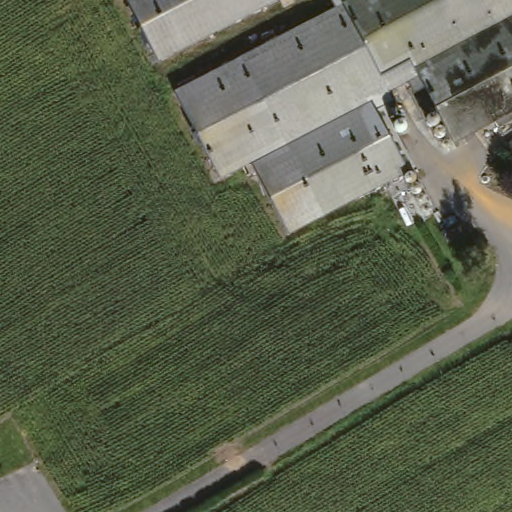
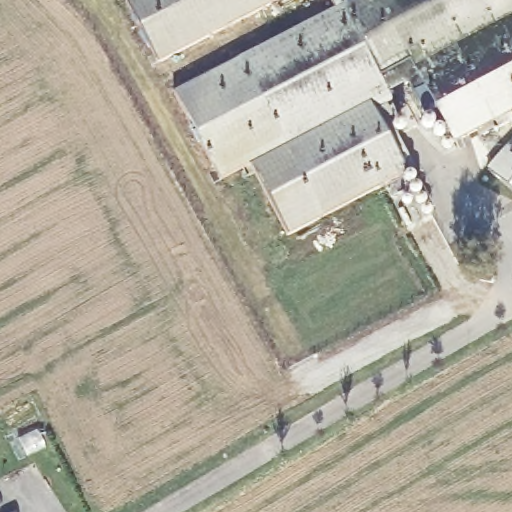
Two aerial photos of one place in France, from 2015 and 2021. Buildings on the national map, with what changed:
unchanged [(127,0),(279,0),(160,61),(127,0)]
unchanged [(363,0),(512,0),(512,110),(459,141),(421,76),(392,92),(383,97),(380,93),(321,23),(344,10),(363,0)]
unchanged [(370,104),(406,172),(286,234),(250,163),(220,178),(175,91),(316,17),(321,23),(380,93),(370,104)]
unchanged [(512,138),(512,153),(505,145),(512,138)]

